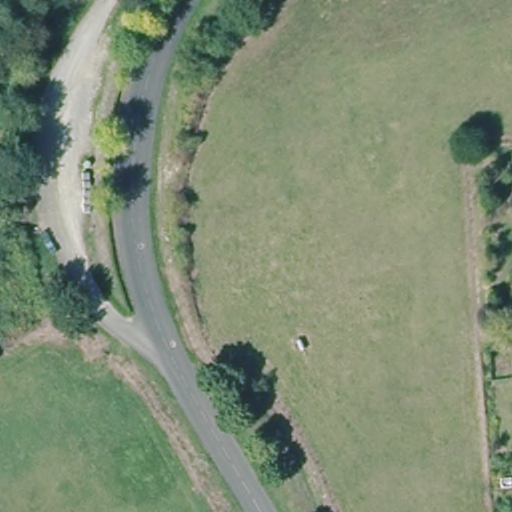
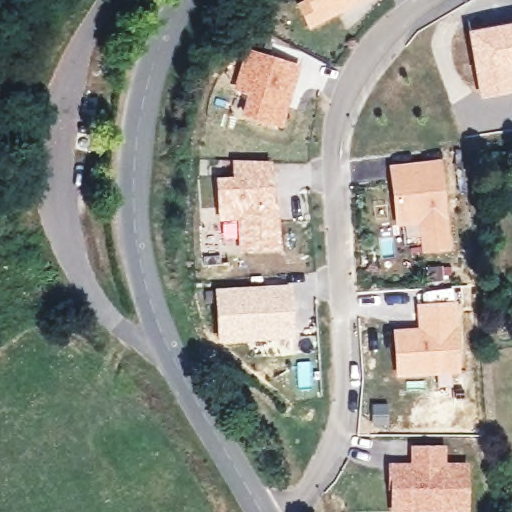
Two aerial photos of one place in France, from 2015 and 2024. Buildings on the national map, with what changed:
new [(295,4),(302,0),(366,0),(308,29),(295,4)]
new [(512,93),(483,98),(471,35),(512,26),(512,93)]
new [(285,128),(241,115),(245,95),(232,91),(245,49),(301,67),(285,128)]
new [(273,201),(278,208),(281,250),(239,254),(237,221),(217,223),(215,177),(232,176),(232,160),(272,161),(273,201)]
new [(451,250),(422,254),(418,225),(395,228),(388,166),(440,160),(451,250)]
new [(295,338),(217,343),(215,290),(291,286),(295,338)]
new [(456,302),(460,374),(395,379),(392,329),(417,328),(416,304),(456,302)]
new [(411,463),(411,446),(446,445),(446,463),(470,462),(469,512),(389,512),(388,463),(411,463)]

